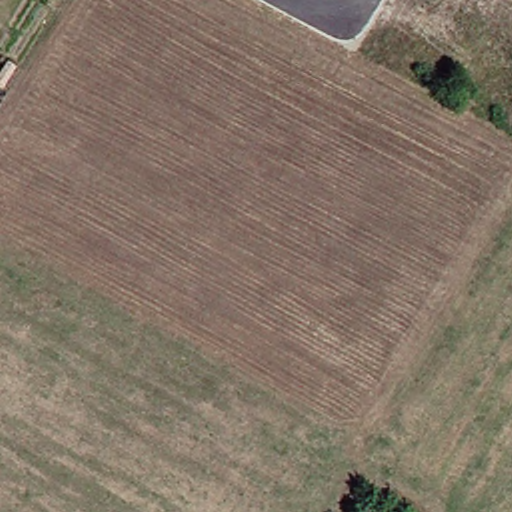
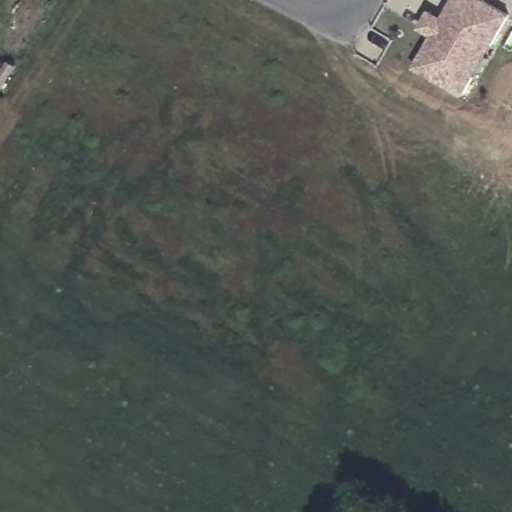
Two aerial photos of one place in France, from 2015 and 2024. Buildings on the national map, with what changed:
new [(460,96),(411,69),(429,37),(417,29),(426,13),(438,20),(450,0),(475,0),(504,17),(487,45),(469,79),(460,96)]

